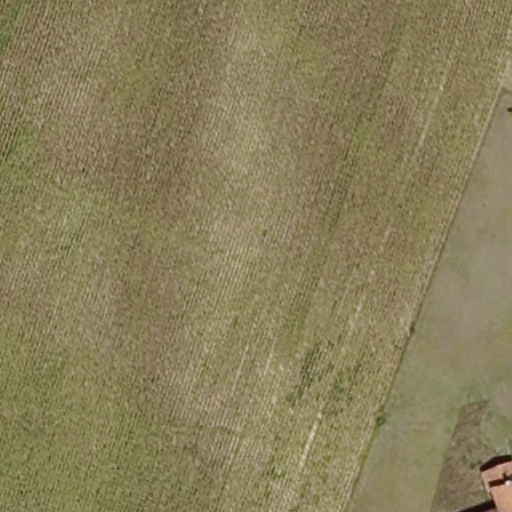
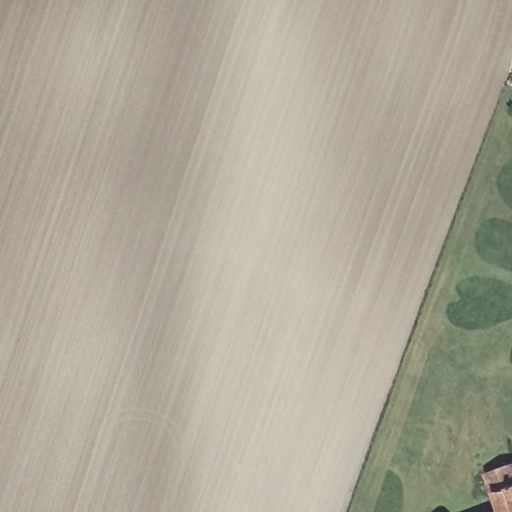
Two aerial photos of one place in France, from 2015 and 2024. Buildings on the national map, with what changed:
unchanged [(477,476),(507,462),(512,472),(512,512),(493,512),(494,511),(477,476)]

